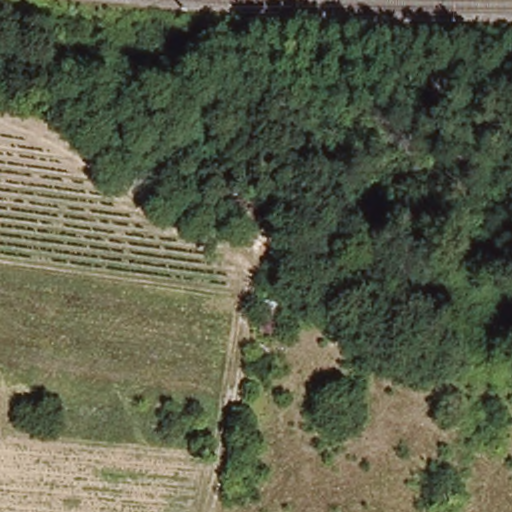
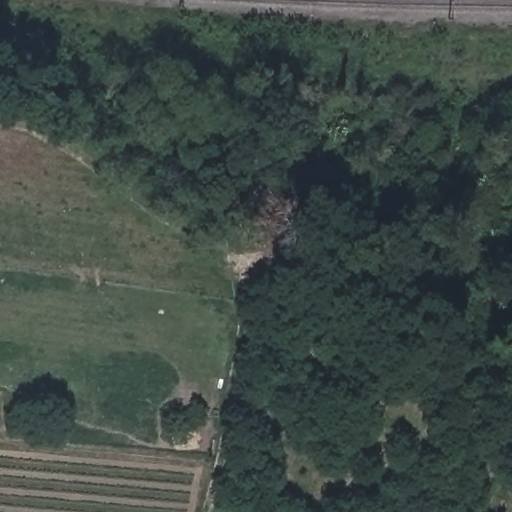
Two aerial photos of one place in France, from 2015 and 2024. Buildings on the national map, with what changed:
unchanged [(274,327),(257,324),(262,296),(277,299),(274,327)]
unchanged [(480,370),(482,357),(497,360),(495,374),(480,370)]

